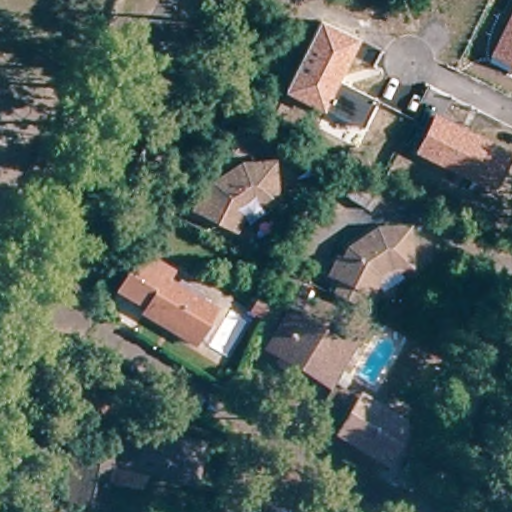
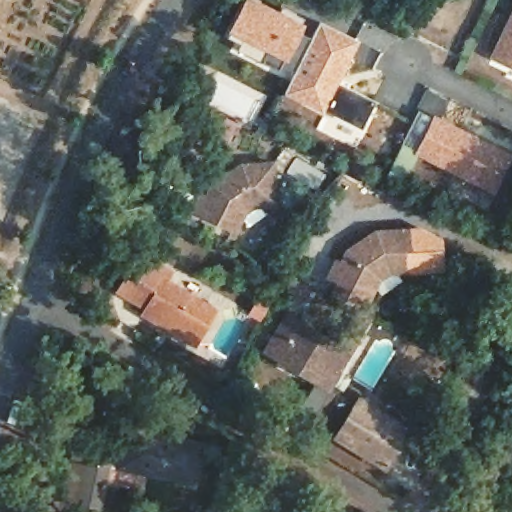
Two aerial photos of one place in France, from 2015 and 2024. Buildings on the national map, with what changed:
new [(262,60),(225,42),(232,30),(229,27),(243,0),(262,0),(305,21),(288,59),(285,57),(278,69),(262,60)]
unchanged [(489,56),(512,7),(512,67),(489,56)]
unchanged [(360,40),(340,81),(375,99),(352,145),(325,130),(332,116),(324,112),(283,92),(320,21),(360,40)]
unchanged [(512,152),(512,158),(495,193),(414,154),(433,112),(512,152)]
unchanged [(241,228),(236,221),(229,233),(190,212),(197,197),(200,199),(209,186),(239,166),(266,166),(268,206),(256,207),(261,216),(241,228)]
unchanged [(323,279),(330,263),(336,266),(341,252),(345,251),(371,234),(402,232),(404,273),(391,273),(396,281),(376,293),(371,287),(365,298),(357,295),(349,311),(327,300),(335,285),(323,279)]
unchanged [(137,320),(141,314),(127,305),(111,296),(126,273),(135,257),(151,267),(165,276),(159,287),(209,316),(188,349),(137,320)]
unchanged [(294,302),(287,299),(271,292),(276,280),(292,287),(300,290),(294,302)]
unchanged [(240,314),(247,301),(251,294),(262,302),(260,307),(250,321),(240,314)]
unchanged [(270,332),(280,317),(292,325),(330,347),(336,337),(351,312),(366,320),(350,346),(323,392),(290,372),(272,361),(258,352),(270,332)]
unchanged [(75,410),(82,397),(85,398),(95,378),(100,368),(118,377),(114,387),(97,421),(75,410)]
unchanged [(402,428),(378,467),(330,438),(353,399),(402,428)]
unchanged [(192,442),(184,482),(100,465),(90,503),(53,496),(61,461),(75,463),(77,450),(109,456),(116,425),(192,442)]

